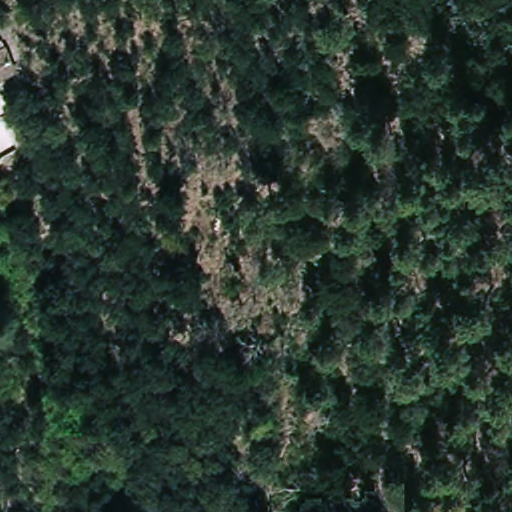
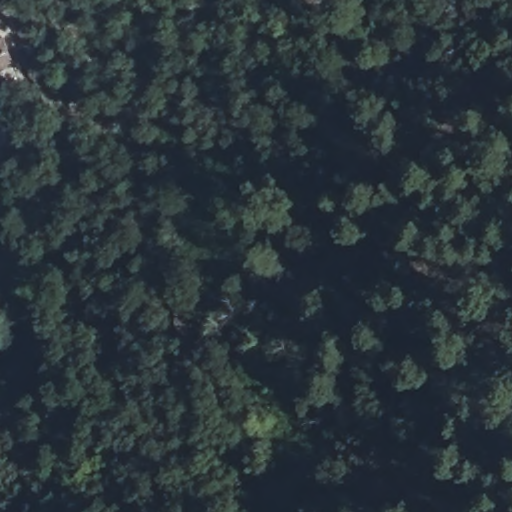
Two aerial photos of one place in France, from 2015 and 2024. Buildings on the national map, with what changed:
unchanged [(8,70),(0,71),(0,45),(3,45),(8,70)]

